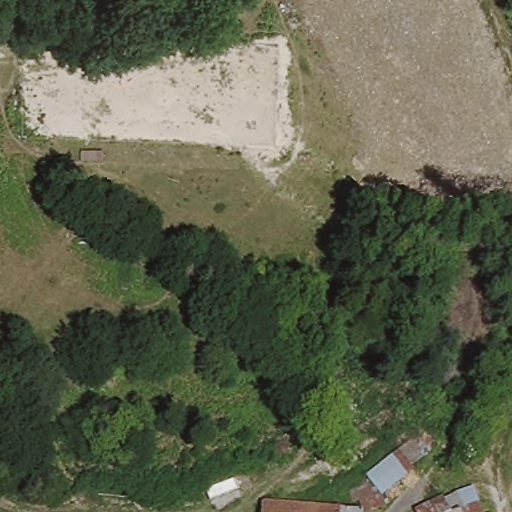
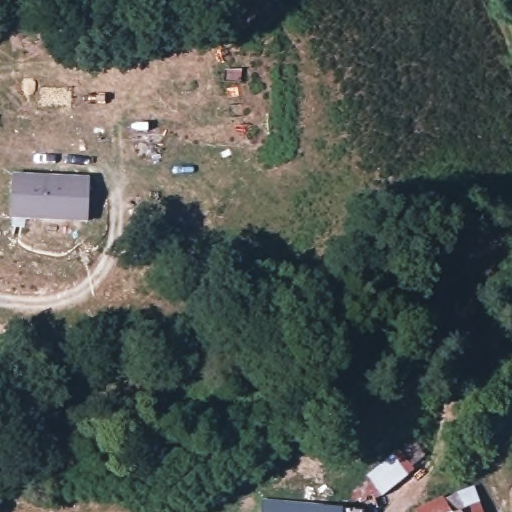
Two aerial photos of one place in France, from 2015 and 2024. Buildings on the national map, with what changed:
new [(87,180),(87,222),(10,219),(12,176),(87,180)]
unchanged [(388,457),(405,478),(378,500),(362,480),(388,457)]
unchanged [(457,511),(450,498),(471,491),(477,506),(479,512),(454,512),(457,511)]
unchanged [(365,511),(365,512),(263,512),(265,501),(365,511)]
unchanged [(435,505),(437,512),(416,512),(435,505)]

